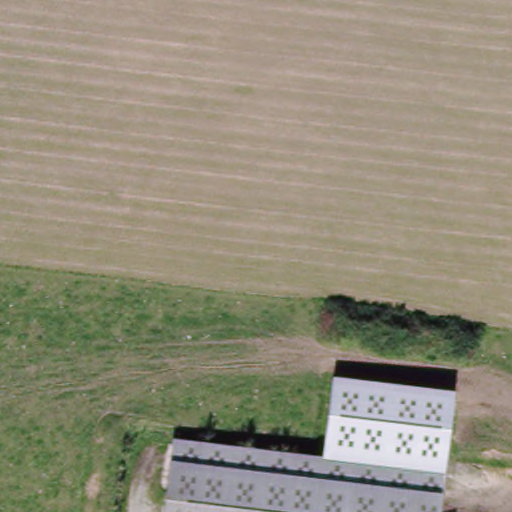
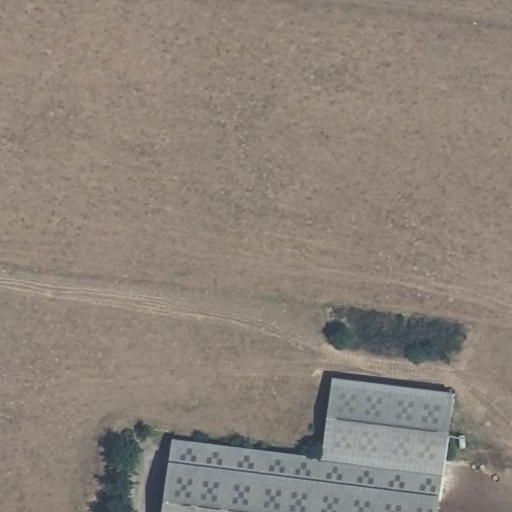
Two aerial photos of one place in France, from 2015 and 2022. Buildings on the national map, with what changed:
unchanged [(332,379),(457,396),(452,476),(322,459),(332,379)]
unchanged [(452,476),(447,512),(168,512),(178,439),(452,476)]

